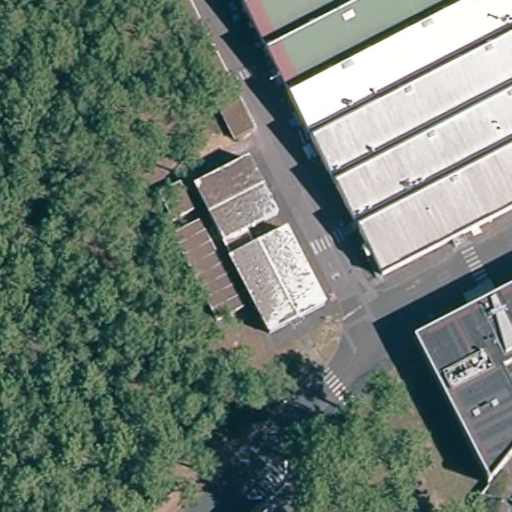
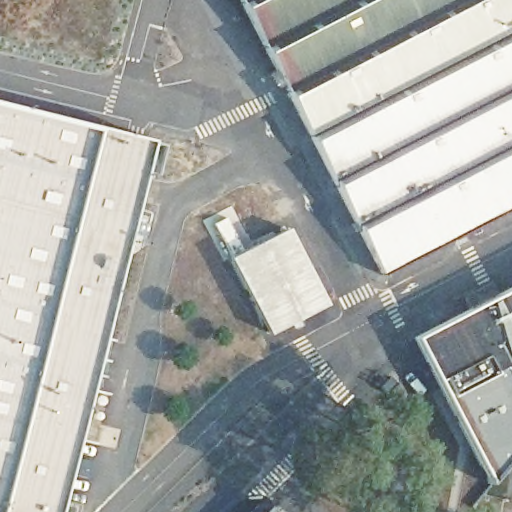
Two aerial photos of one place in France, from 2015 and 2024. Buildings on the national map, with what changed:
unchanged [(244,0),(512,0),(512,204),(385,270),(244,0)]
new [(150,141),(58,512),(0,512),(0,103),(150,141)]
demolished [(224,239),(196,184),(251,155),(279,210),(224,239)]
unchanged [(272,329),(232,253),(287,225),(327,301),(272,329)]
unchanged [(512,389),(512,438),(482,475),(407,332),(464,303),(459,294),(486,280),(491,289),(512,278),(512,352),(497,360),(512,389)]
unchanged [(271,512),(265,512),(268,509),(271,512)]

